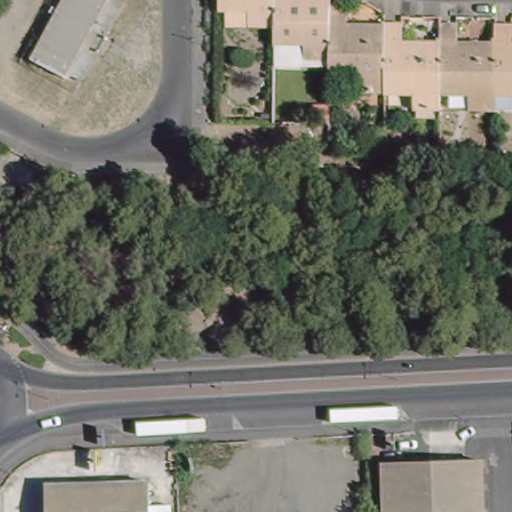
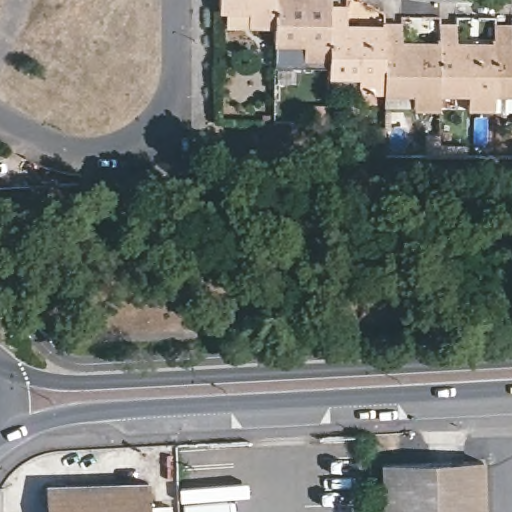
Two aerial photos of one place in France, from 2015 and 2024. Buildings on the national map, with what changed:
demolished [(108,0),(66,79),(31,59),(62,0),(108,0)]
unchanged [(220,6),(220,0),(274,0),(274,23),(248,23),(248,6),(220,6)]
unchanged [(329,54),(304,54),(304,37),(274,36),(274,23),(274,0),(329,0),(329,4),(329,54)]
unchanged [(384,89),(361,88),(361,71),(329,70),(329,54),(329,4),(350,4),(350,23),(385,24),(384,89)]
unchanged [(439,89),(439,107),(415,106),(415,89),(384,89),(385,24),(385,21),(406,23),(405,40),(439,40),(439,89)]
unchanged [(470,90),(439,89),(439,40),(439,21),(458,23),(458,40),(495,41),(494,90),(494,107),(470,106),(470,90)]
unchanged [(495,41),(495,22),(512,23),(511,41),(512,41),(512,90),(494,90),(495,41)]
unchanged [(491,462),(492,512),(394,512),(393,464),(491,462)]
unchanged [(153,477),(154,512),(52,512),(52,481),(153,477)]

